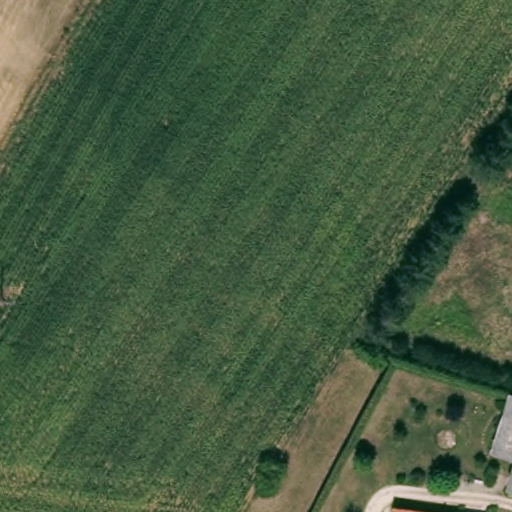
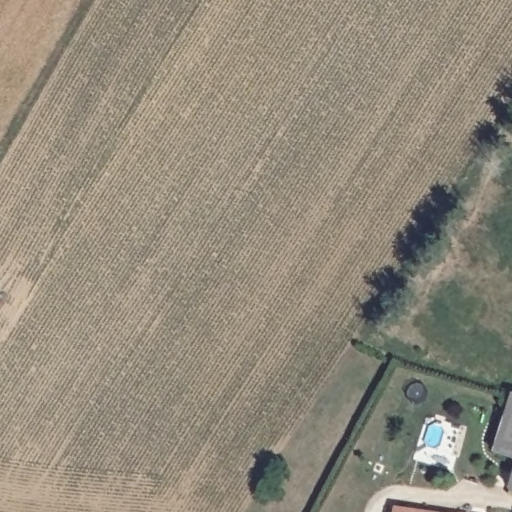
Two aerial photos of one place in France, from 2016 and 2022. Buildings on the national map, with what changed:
unchanged [(507,456),(495,453),(505,417),(510,400),(511,395),(512,395),(512,457),(507,456)]
unchanged [(427,512),(389,512),(390,506),(427,512)]

